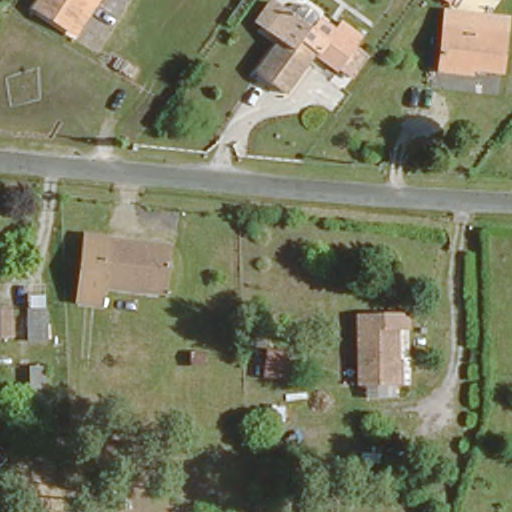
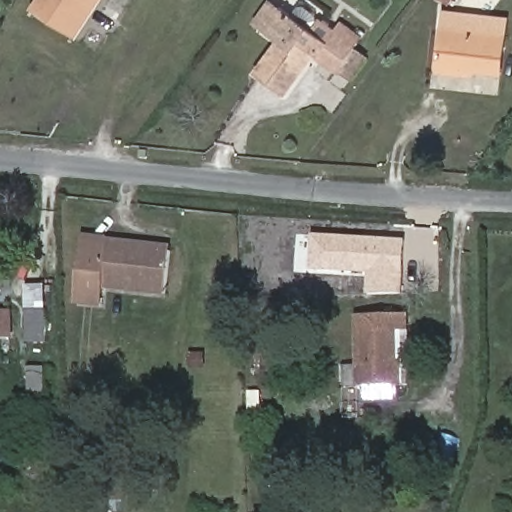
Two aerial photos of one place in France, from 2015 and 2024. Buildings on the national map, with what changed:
unchanged [(71,25),(34,1),(34,0),(88,0),(71,25)]
unchanged [(293,7),(299,0),(312,0),(318,4),(320,11),(313,23),(327,33),(334,23),(357,40),(338,64),(314,47),(283,88),(257,69),(281,34),(255,14),(265,0),(283,0),(293,7)]
unchanged [(505,28),(501,67),(470,65),(469,70),(439,67),(440,54),(442,23),(461,24),(505,28)]
unchanged [(143,236),(142,243),(168,247),(163,288),(105,282),(101,301),(75,297),(82,235),(107,239),(108,232),(143,236)]
new [(403,295),(368,294),(369,274),(310,270),(313,235),(407,240),(403,295)]
unchanged [(3,333),(0,333),(0,301),(4,301),(3,333)]
unchanged [(44,340),(27,340),(26,307),(44,306),(44,340)]
unchanged [(406,309),(405,324),(397,325),(395,381),(356,380),(357,308),(406,309)]
unchanged [(287,351),(283,374),(262,372),(266,347),(287,351)]
unchanged [(41,359),(42,383),(42,405),(28,405),(26,383),(27,360),(41,359)]

